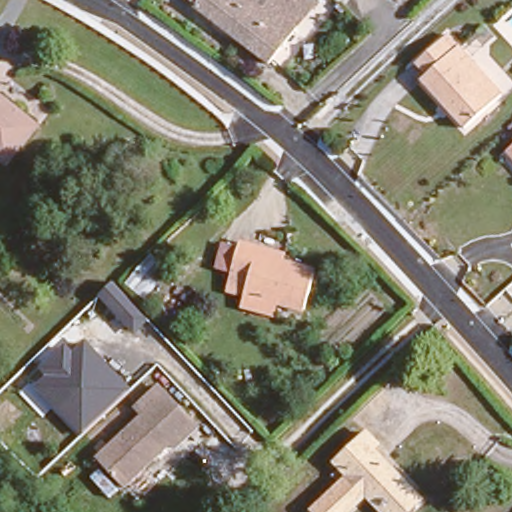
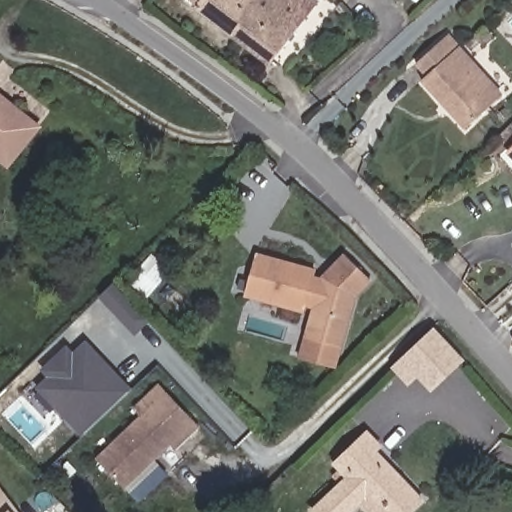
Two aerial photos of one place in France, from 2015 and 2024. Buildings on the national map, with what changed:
unchanged [(191,1),(191,0),(243,0),(252,9),(235,32),(191,1)]
unchanged [(252,9),(243,0),(303,0),(289,19),(296,25),(270,59),(235,32),(252,9)]
unchanged [(426,64),(419,54),(450,26),(477,56),(503,83),(464,117),(454,105),(459,100),(451,92),(446,96),(421,69),(426,64)]
unchanged [(495,42),(477,56),(466,42),(483,27),(495,42)]
unchanged [(0,91),(38,117),(16,148),(9,156),(0,149),(0,91)]
demolished [(252,249),(277,257),(308,268),(296,304),(240,284),(245,269),(252,249)]
new [(345,252),(372,281),(356,298),(337,369),(298,358),(311,308),(306,307),(304,313),(246,298),(257,253),(316,269),(315,275),(320,277),(345,252)]
unchanged [(139,338),(99,294),(112,280),(153,323),(139,338)]
new [(428,394),(400,364),(439,329),(466,358),(428,394)]
unchanged [(83,436),(36,389),(48,376),(40,370),(67,341),(77,350),(84,342),(131,391),(83,436)]
unchanged [(160,376),(201,419),(173,445),(167,440),(140,411),(131,402),(160,376)]
unchanged [(139,412),(140,411),(167,440),(119,481),(92,451),(139,412)]
unchanged [(344,512),(319,512),(313,504),(350,470),(336,456),(366,428),(424,493),(403,512),(389,512),(368,489),(344,512)]
new [(0,512),(0,495),(14,512),(0,512)]

